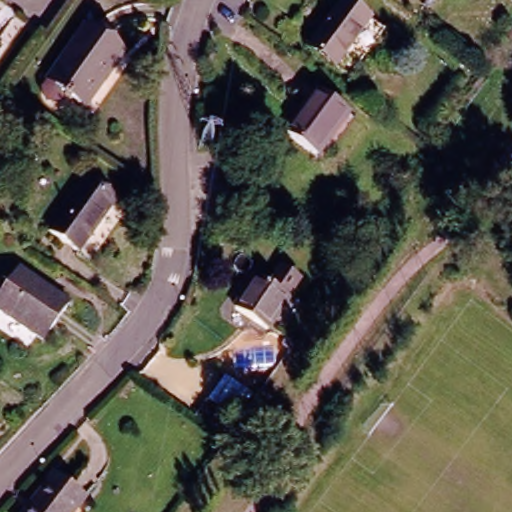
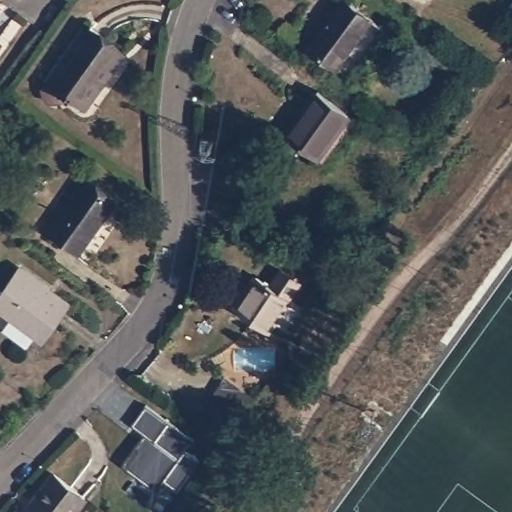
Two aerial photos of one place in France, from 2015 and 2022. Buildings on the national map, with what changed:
unchanged [(344,0),(378,25),(343,73),(302,43),(333,0),(344,0)]
unchanged [(87,26),(125,53),(87,106),(49,79),(87,26)]
unchanged [(317,97),(348,120),(316,165),(285,143),(317,97)]
unchanged [(83,179),(115,201),(77,252),(47,230),(83,179)]
unchanged [(73,302),(45,340),(0,308),(0,299),(24,267),(73,302)]
unchanged [(260,277),(272,286),(284,270),(301,282),(266,331),(237,310),(260,277)]
new [(140,440),(144,442),(148,436),(132,424),(147,403),(195,438),(187,449),(200,459),(178,491),(164,481),(155,492),(122,467),(140,440)]
unchanged [(54,475),(85,499),(74,512),(24,512),(54,475)]

